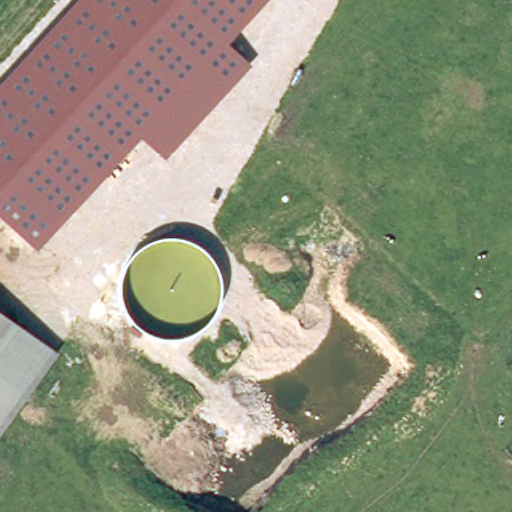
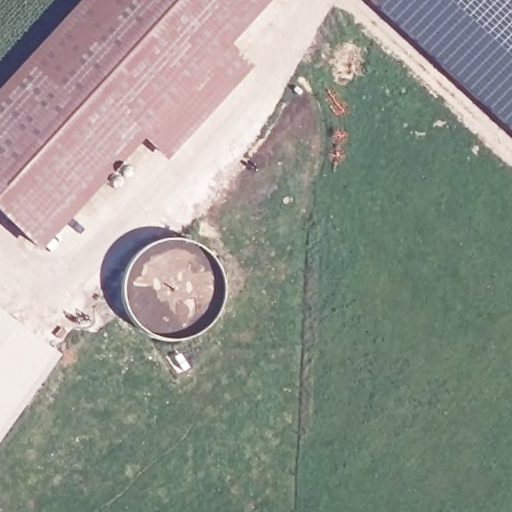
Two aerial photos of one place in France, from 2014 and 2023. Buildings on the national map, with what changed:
unchanged [(38,252),(0,217),(0,85),(78,0),(268,0),(229,43),(252,65),(167,160),(141,138),(38,252)]
new [(356,0),(512,0),(512,142),(356,0)]
unchanged [(0,328),(0,323),(2,324),(0,328)]
unchanged [(50,358),(0,429),(0,328),(2,324),(50,358)]

